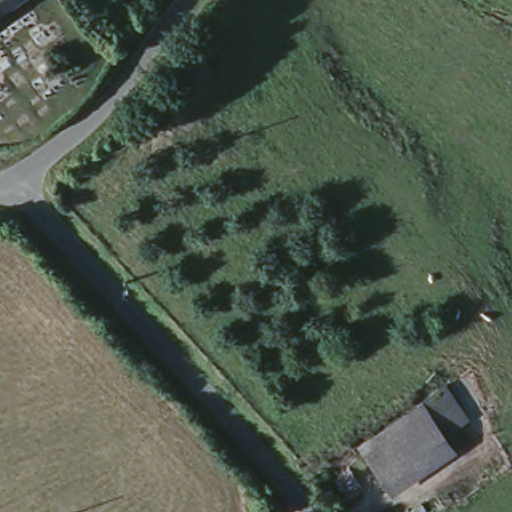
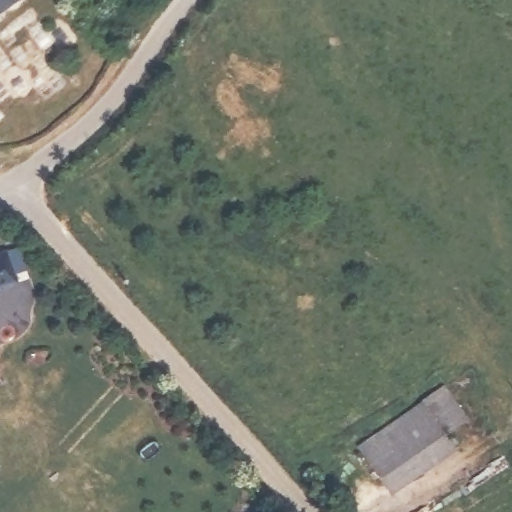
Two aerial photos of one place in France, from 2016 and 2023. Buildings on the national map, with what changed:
unchanged [(26,0),(0,17),(0,0),(26,0)]
unchanged [(1,24),(0,24),(0,23),(1,24)]
new [(6,252),(15,279),(0,285),(0,254),(6,252)]
unchanged [(435,388),(461,421),(443,436),(457,453),(398,505),(359,455),(416,405),(435,388)]

